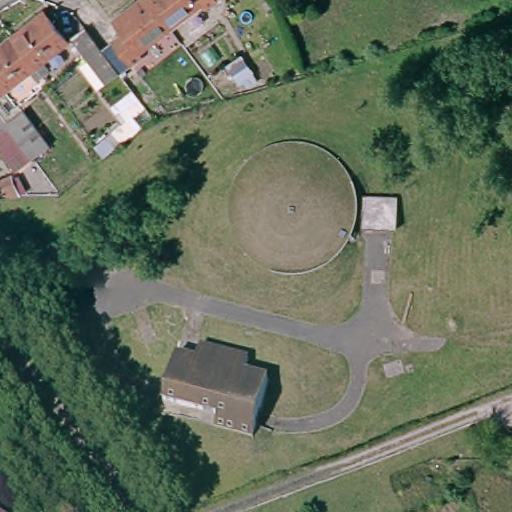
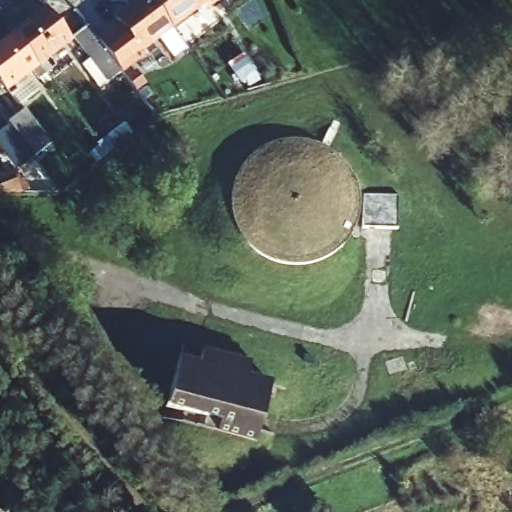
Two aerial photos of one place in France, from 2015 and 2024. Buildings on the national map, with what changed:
unchanged [(75,38),(86,28),(102,46),(123,27),(113,16),(132,0),(153,0),(171,20),(139,46),(143,49),(120,67),(108,78),(75,38)]
unchanged [(153,0),(195,0),(171,20),(153,0)]
unchanged [(13,39),(45,13),(70,41),(46,61),(54,71),(46,77),(13,39)]
unchanged [(32,74),(8,93),(0,82),(0,50),(13,39),(46,77),(40,83),(32,74)]
unchanged [(0,131),(5,127),(3,124),(18,111),(48,146),(33,160),(18,173),(0,152),(0,131)]
unchanged [(114,141),(124,131),(133,141),(122,150),(114,141)]
unchanged [(174,358),(193,364),(198,350),(248,366),(243,380),(263,387),(248,431),(161,402),(174,358)]

